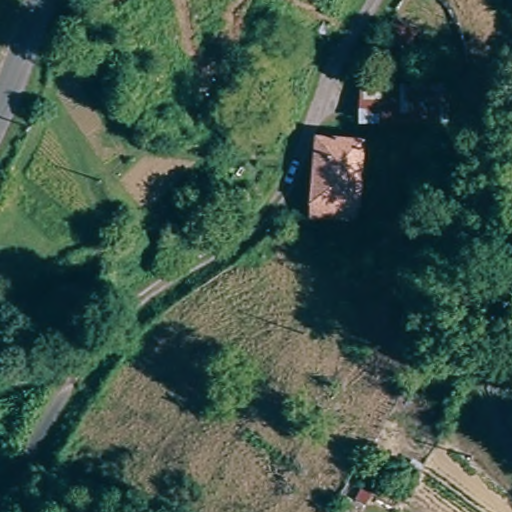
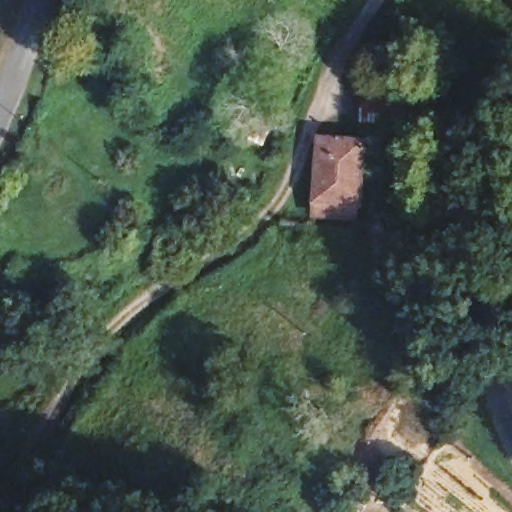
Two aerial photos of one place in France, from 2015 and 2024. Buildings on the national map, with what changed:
unchanged [(421,27),(399,68),(396,73),(372,60),(375,55),(397,14),(421,27)]
unchanged [(421,123),(361,124),(360,87),(420,86),(421,123)]
unchanged [(355,221),(335,220),(311,217),(318,137),(359,141),(355,221)]

